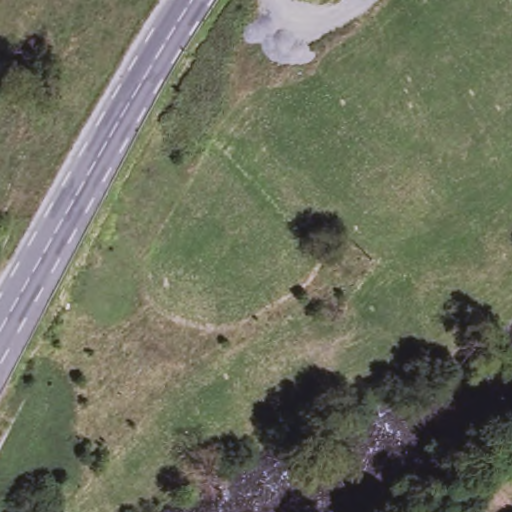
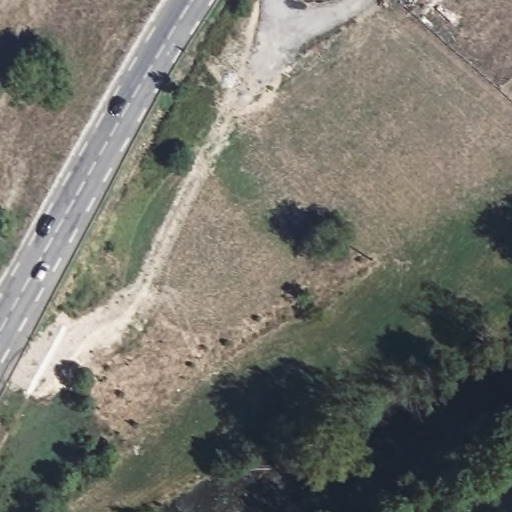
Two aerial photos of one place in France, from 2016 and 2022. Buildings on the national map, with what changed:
[]

